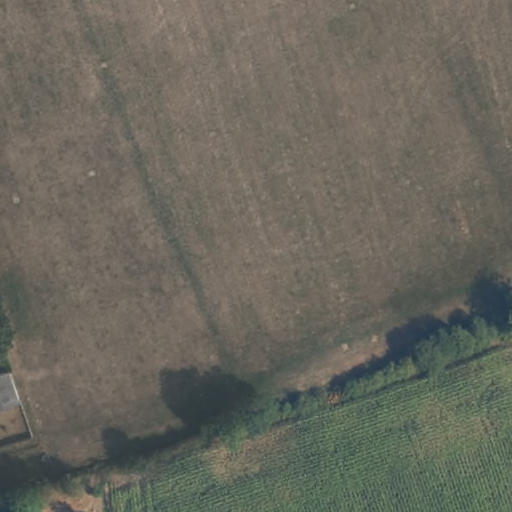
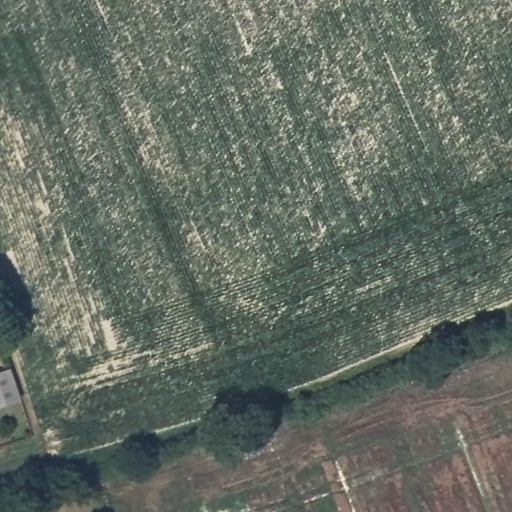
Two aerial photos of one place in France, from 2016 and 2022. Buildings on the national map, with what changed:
unchanged [(0,409),(0,375),(10,371),(21,401),(0,409)]

